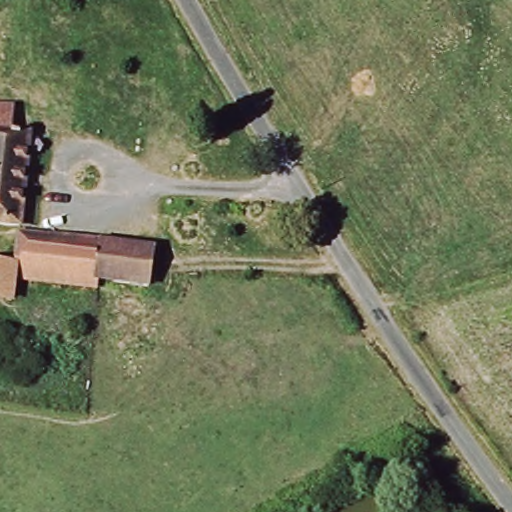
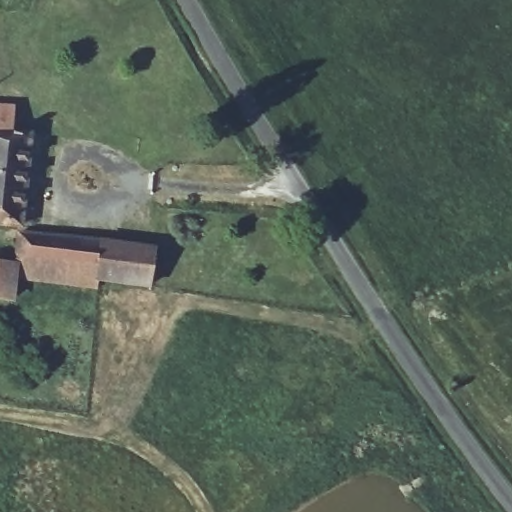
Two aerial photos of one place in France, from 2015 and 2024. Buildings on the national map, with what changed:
unchanged [(0,177),(0,107),(8,108),(7,131),(22,134),(18,179),(0,177)]
unchanged [(13,225),(0,223),(0,177),(18,179),(13,225)]
unchanged [(9,267),(13,232),(148,247),(142,290),(127,288),(125,310),(106,308),(108,287),(97,287),(96,290),(31,282),(28,303),(5,301),(9,267)]
unchanged [(0,300),(0,266),(9,267),(5,301),(0,300)]

